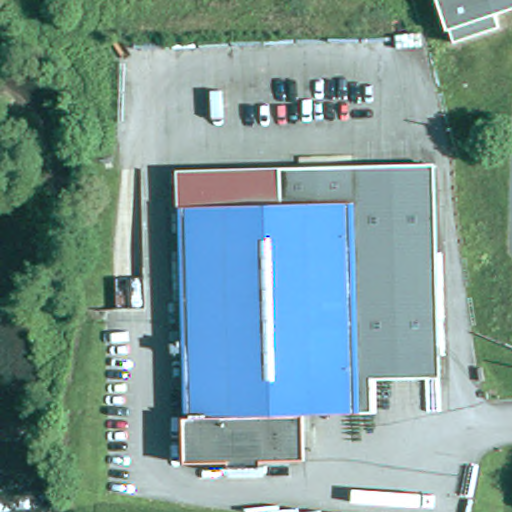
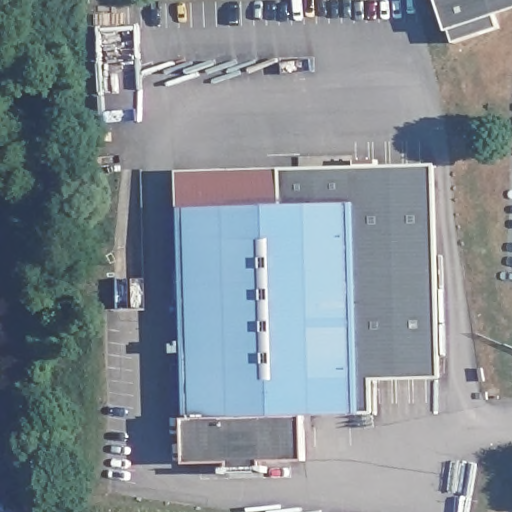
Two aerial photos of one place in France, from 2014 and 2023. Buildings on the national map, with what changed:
unchanged [(497,15),(500,27),(455,43),(439,0),(512,0),(512,10),(497,15)]
unchanged [(440,378),(372,382),(371,414),(303,417),(303,460),(260,462),(260,466),(230,467),(230,462),(185,464),(178,174),(434,166),(440,378)]
unchanged [(478,368),(482,368),(484,380),(480,381),(478,368)]

